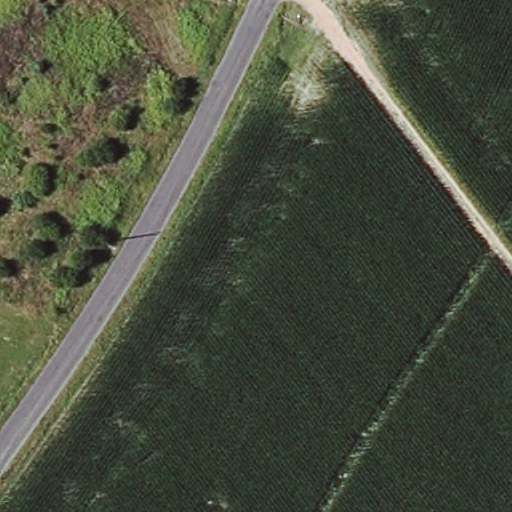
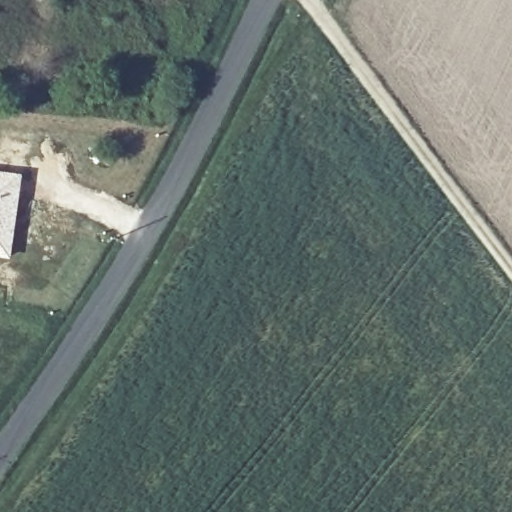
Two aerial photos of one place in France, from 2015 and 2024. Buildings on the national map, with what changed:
new [(21,174),(8,260),(0,259),(0,171),(21,174)]

